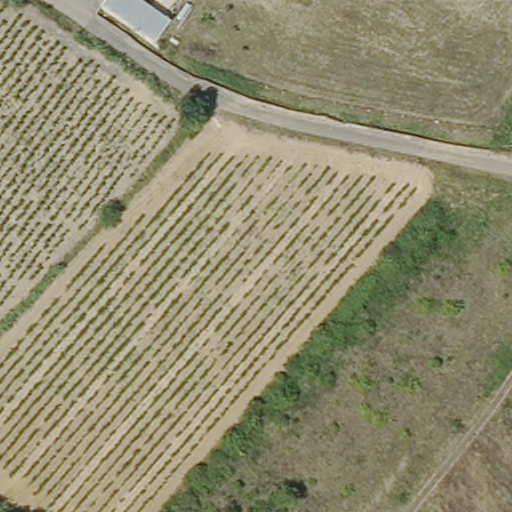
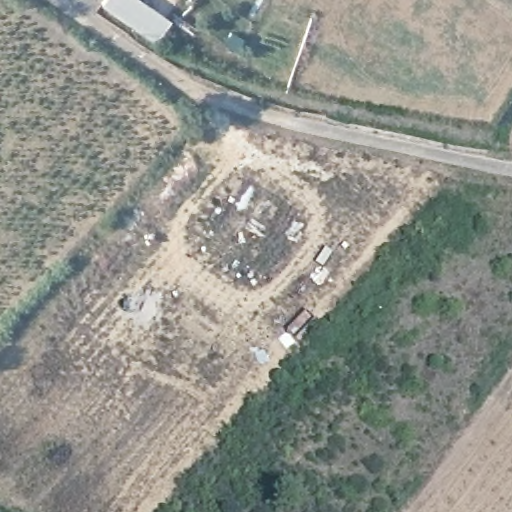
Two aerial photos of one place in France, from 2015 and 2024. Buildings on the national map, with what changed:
unchanged [(105,0),(144,0),(171,19),(156,41),(102,5),(105,0)]

